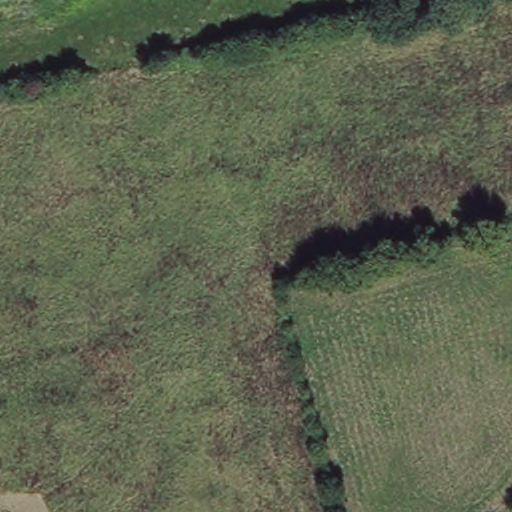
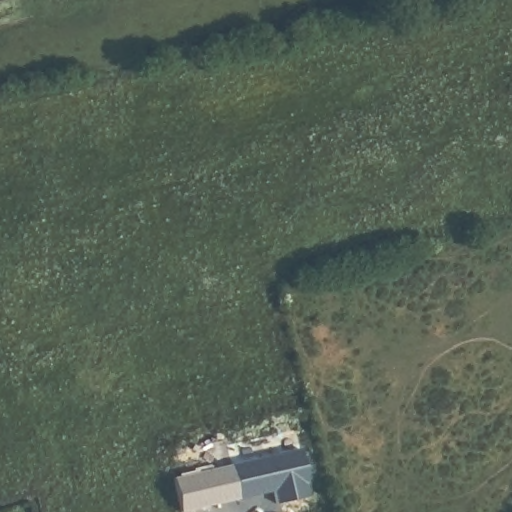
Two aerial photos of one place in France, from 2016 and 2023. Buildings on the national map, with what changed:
new [(275,489),(240,497),(180,510),(172,480),(233,467),(299,452),(305,498),(280,504),(275,489)]

